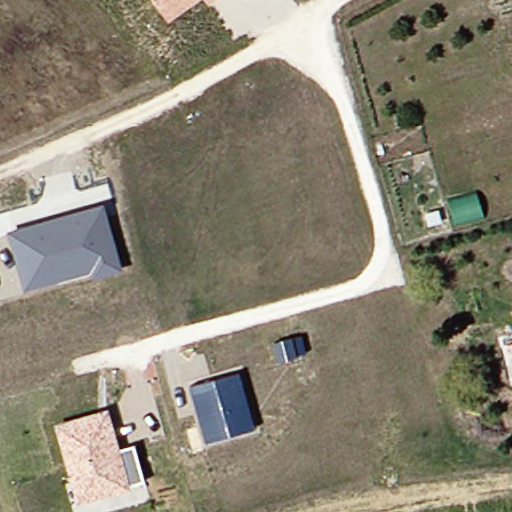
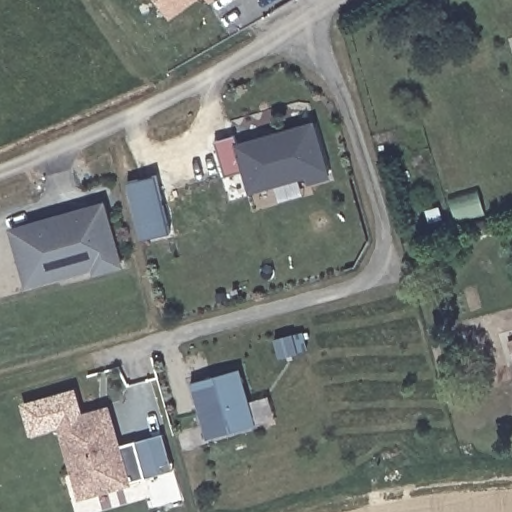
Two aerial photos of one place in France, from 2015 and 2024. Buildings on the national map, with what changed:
new [(169,16),(158,0),(190,0),(169,16)]
new [(225,176),(215,142),(235,135),(236,141),(314,122),(331,177),(308,185),(305,177),(249,195),(242,172),(225,176)]
new [(169,233),(143,240),(129,183),(155,176),(169,233)]
unchanged [(7,230),(105,202),(124,267),(92,276),(90,270),(24,287),(7,230)]
unchanged [(254,425),(205,438),(192,384),(240,368),(254,425)]
unchanged [(145,480),(78,498),(55,421),(109,405),(120,447),(135,443),(145,480)]

